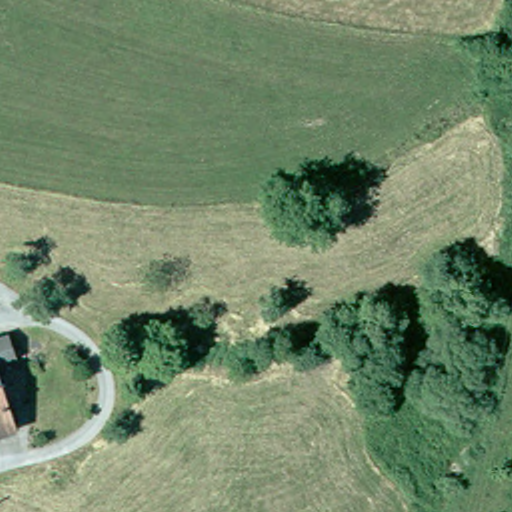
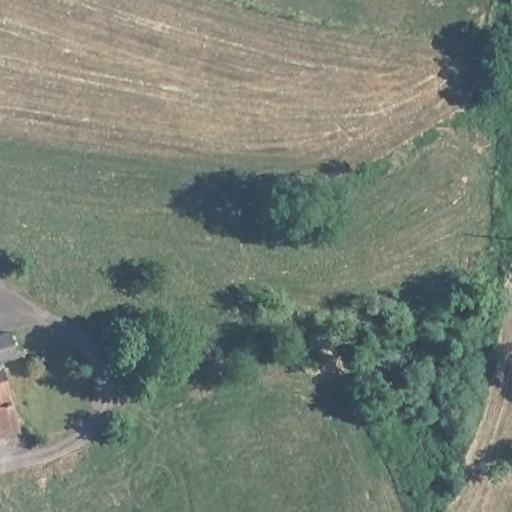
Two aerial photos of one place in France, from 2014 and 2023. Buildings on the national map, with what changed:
unchanged [(0,439),(0,386),(15,434),(0,439)]

